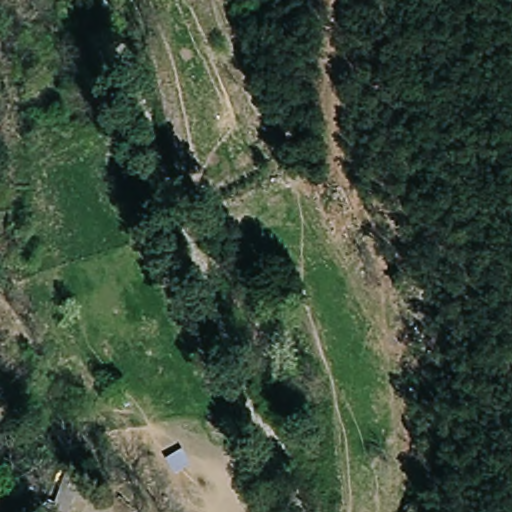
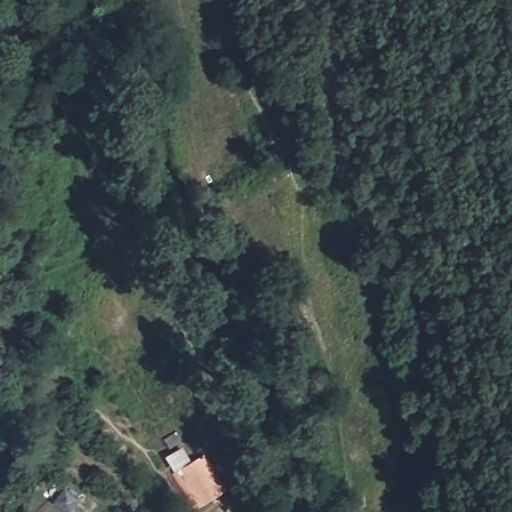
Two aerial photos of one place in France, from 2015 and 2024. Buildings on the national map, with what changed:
new [(201,456),(224,493),(198,508),(166,459),(183,448),(191,462),(201,456)]

